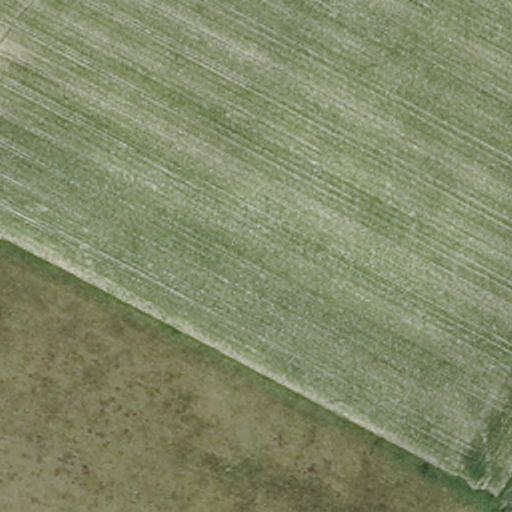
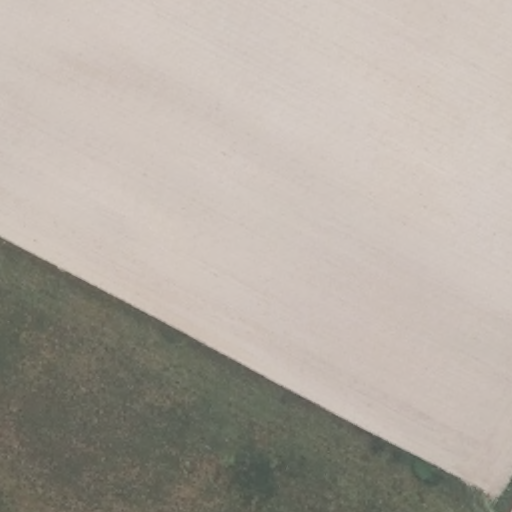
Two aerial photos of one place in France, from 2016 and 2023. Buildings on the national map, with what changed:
[]

